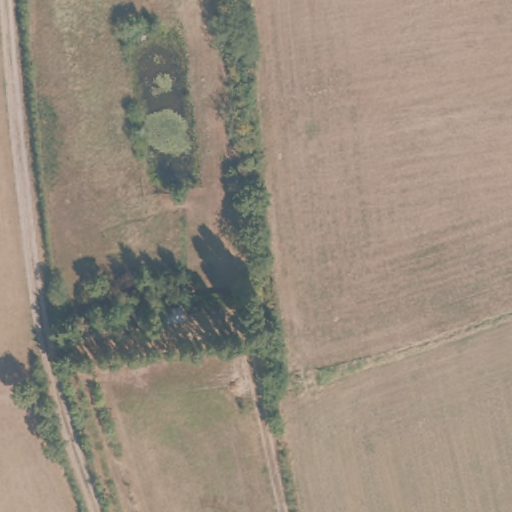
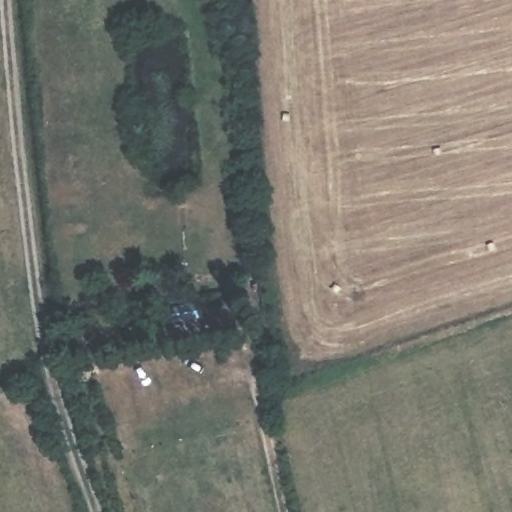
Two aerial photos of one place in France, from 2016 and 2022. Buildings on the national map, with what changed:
unchanged [(186,305),(186,322),(165,326),(160,308),(186,305)]

